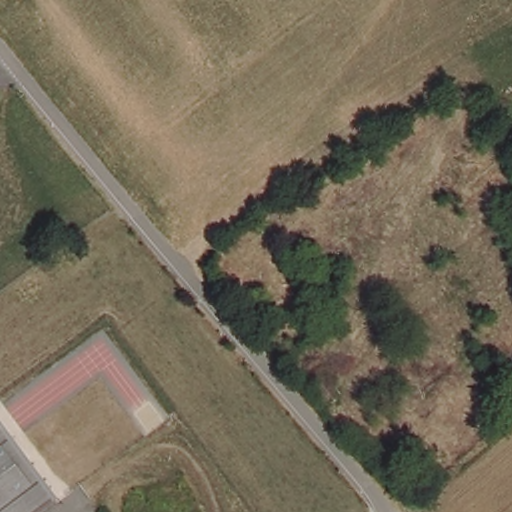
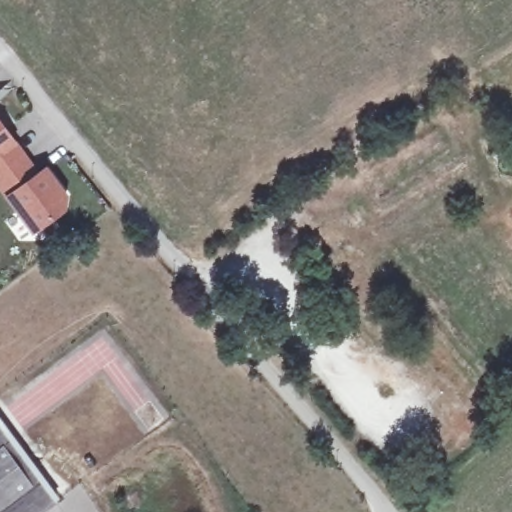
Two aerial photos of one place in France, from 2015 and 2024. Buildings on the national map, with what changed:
new [(0,119),(18,144),(39,172),(47,167),(68,197),(67,211),(33,236),(5,198),(0,190),(0,119)]
unchanged [(48,512),(0,512),(0,417),(61,503),(48,512)]

